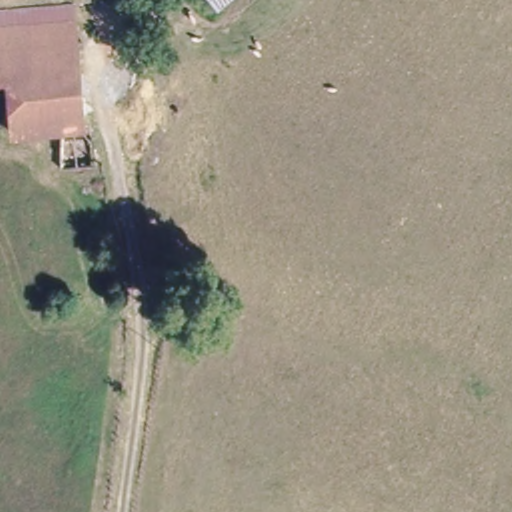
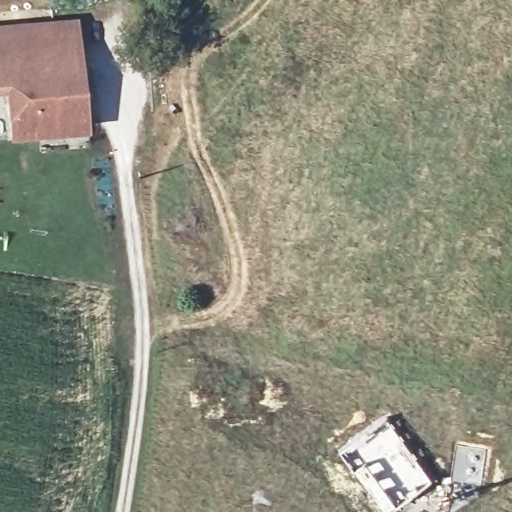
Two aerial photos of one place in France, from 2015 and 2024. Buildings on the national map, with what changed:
unchanged [(206,0),(214,0),(209,4),(206,0)]
unchanged [(1,23),(69,20),(74,117),(56,118),(5,120),(2,62),(1,23)]
unchanged [(74,117),(82,118),(82,157),(55,157),(55,143),(56,118),(74,117)]
new [(365,462),(355,470),(340,450),(387,416),(434,479),(397,505),(365,462)]

